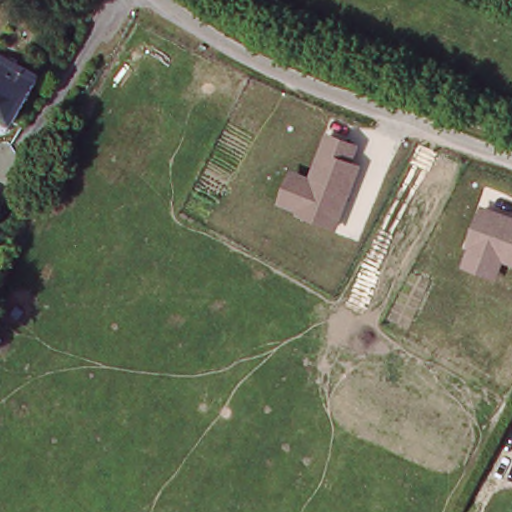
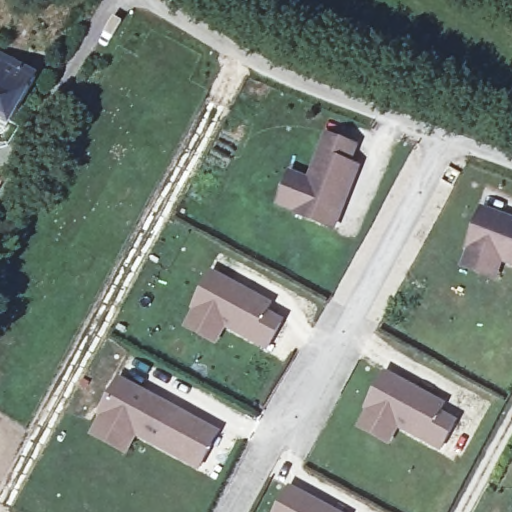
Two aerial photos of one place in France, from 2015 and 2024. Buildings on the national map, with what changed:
unchanged [(10,121),(0,115),(0,56),(37,78),(10,121)]
unchanged [(356,145),(349,162),(359,165),(335,232),(272,208),(286,170),(306,177),(324,132),(356,145)]
unchanged [(512,219),(512,268),(501,264),(494,281),(459,269),(467,247),(464,246),(480,207),(512,219)]
new [(272,303),(268,310),(284,320),(268,351),(226,328),(216,347),(181,327),(191,310),(189,309),(212,270),(272,303)]
new [(366,411),(362,410),(384,371),(444,403),(441,410),(457,418),(439,451),(397,429),(388,446),(356,429),(366,411)]
new [(199,471),(136,436),(126,455),(89,435),(98,417),(96,416),(118,376),(221,431),(199,471)]
new [(339,512),(273,512),(289,485),(339,512)]

